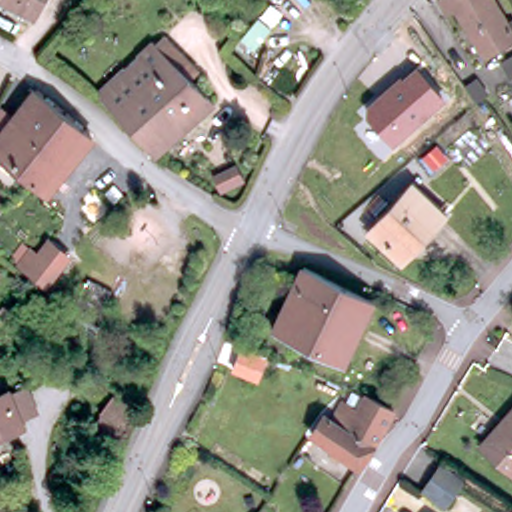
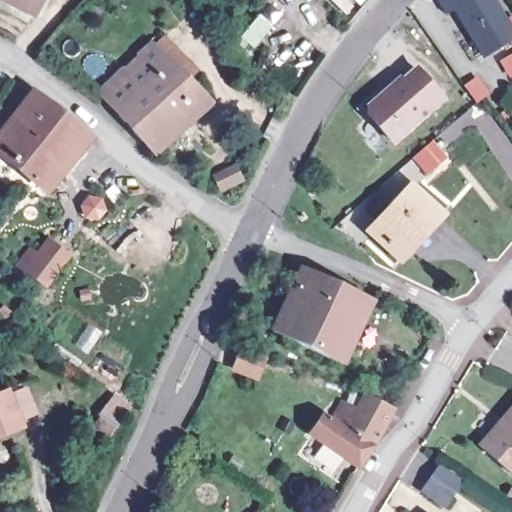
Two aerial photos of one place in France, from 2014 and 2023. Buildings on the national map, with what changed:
unchanged [(42,0),(35,14),(10,0),(42,0)]
unchanged [(446,16),(437,1),(438,0),(492,0),(512,35),(512,37),(482,56),(456,11),(446,16)]
unchanged [(246,25),(250,20),(262,30),(247,51),(239,45),(235,50),(229,46),(242,30),(246,25)]
unchanged [(90,95),(144,46),(146,48),(157,38),(190,71),(180,81),(202,105),(146,156),(90,95)]
unchanged [(511,56),(512,55),(512,59),(511,56)]
unchanged [(447,99),(394,145),(363,111),(416,64),(447,99)]
unchanged [(88,140),(75,156),(45,195),(0,158),(0,136),(30,95),(88,140)]
unchanged [(204,179),(225,168),(231,182),(211,193),(204,179)]
unchanged [(106,203),(97,194),(106,185),(116,193),(106,203)]
unchanged [(412,185),(441,212),(399,258),(370,231),(412,185)]
unchanged [(72,256),(51,289),(17,265),(30,246),(35,251),(46,236),(72,256)]
unchanged [(303,268),(370,301),(340,364),(272,330),(303,268)]
unchanged [(15,423),(0,429),(0,394),(2,393),(15,423)]
unchanged [(387,405),(391,408),(380,430),(367,452),(357,467),(309,432),(322,413),(329,418),(340,401),(354,408),(362,394),(387,405)]
unchanged [(477,445),(505,415),(501,411),(512,397),(512,464),(506,472),(477,445)]
unchanged [(439,462),(459,479),(441,504),(420,488),(439,462)]

